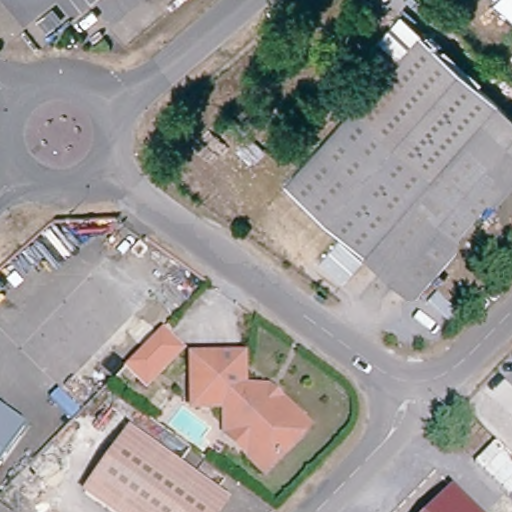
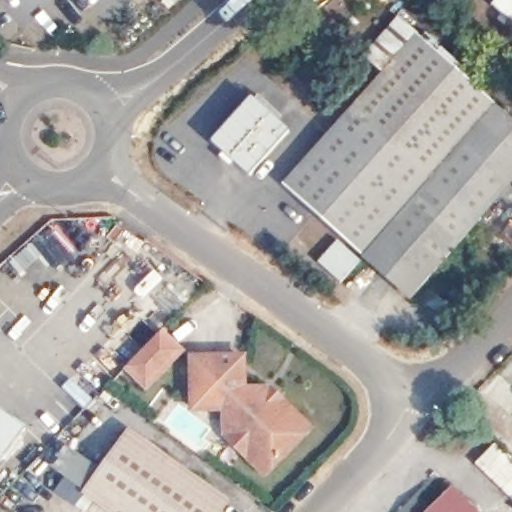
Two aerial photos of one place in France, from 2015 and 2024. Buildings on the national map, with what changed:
unchanged [(489,6),(485,0),(512,0),(512,59),(472,24),(489,6)]
unchanged [(370,79),(354,61),(394,16),(412,32),(370,79)]
unchanged [(416,37),(512,123),(512,183),(475,222),(348,110),(416,37)]
new [(254,100),(292,134),(252,179),(214,145),(254,100)]
unchanged [(409,297),(284,181),(348,110),(475,222),(409,297)]
unchanged [(120,367),(160,326),(182,347),(144,388),(120,367)]
unchanged [(223,422),(224,414),(214,408),(184,408),(184,362),(238,362),(238,383),(261,384),(267,384),(282,399),(309,427),(265,471),(245,452),(223,430),(223,422)]
unchanged [(22,423),(0,452),(0,407),(22,423)]
unchanged [(81,499),(127,436),(225,505),(219,512),(99,512),(81,499)]
unchanged [(445,492),(467,512),(425,512),(445,492)]

